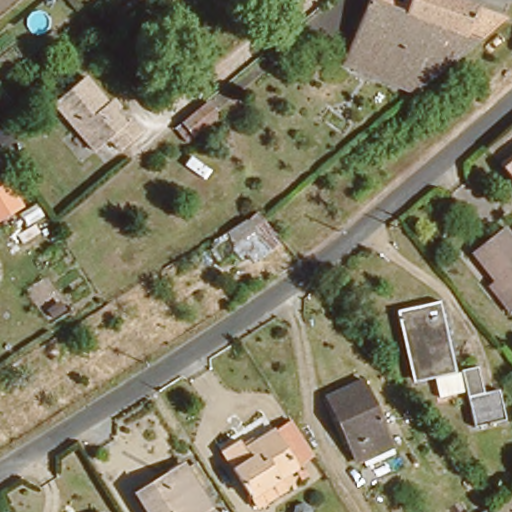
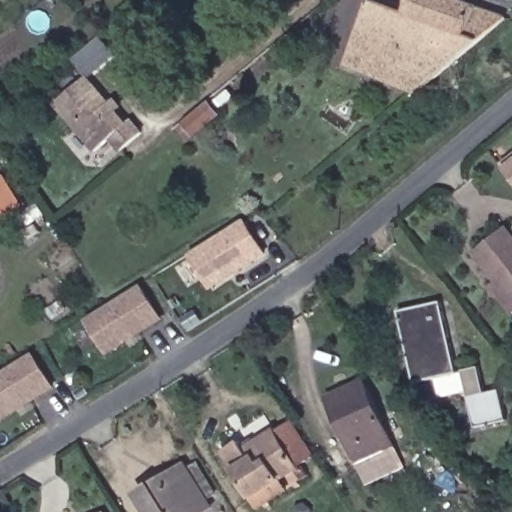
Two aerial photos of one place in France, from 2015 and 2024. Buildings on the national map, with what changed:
unchanged [(350,70),(382,0),(415,0),(422,3),(424,0),(465,0),(505,15),(411,95),(350,70)]
unchanged [(125,120),(130,115),(144,130),(118,151),(105,136),(90,146),(55,100),(87,75),(125,120)]
unchanged [(218,120),(186,145),(173,130),(201,103),(218,120)]
unchanged [(512,163),(512,178),(504,169),(512,163)]
new [(17,207),(0,218),(0,178),(17,207)]
demolished [(280,239),(257,261),(249,252),(239,260),(224,235),(255,212),(280,239)]
new [(211,291),(187,255),(245,218),(267,255),(211,291)]
unchanged [(497,277),(473,250),(505,225),(512,233),(512,307),(491,283),(497,277)]
new [(107,355),(84,320),(141,284),(164,320),(107,355)]
unchanged [(436,305),(455,374),(478,368),(486,395),(500,391),(509,420),(476,427),(466,392),(444,398),(438,380),(419,383),(412,385),(396,328),(392,315),(436,305)]
new [(0,423),(0,373),(34,352),(55,387),(0,423)]
unchanged [(332,417),(324,402),(361,385),(393,451),(362,465),(357,467),(332,417)]
unchanged [(251,507),(243,495),(216,453),(235,441),(239,448),(294,420),(317,456),(274,478),(281,490),(251,507)]
unchanged [(213,507),(205,512),(140,512),(132,500),(187,466),(213,507)]

